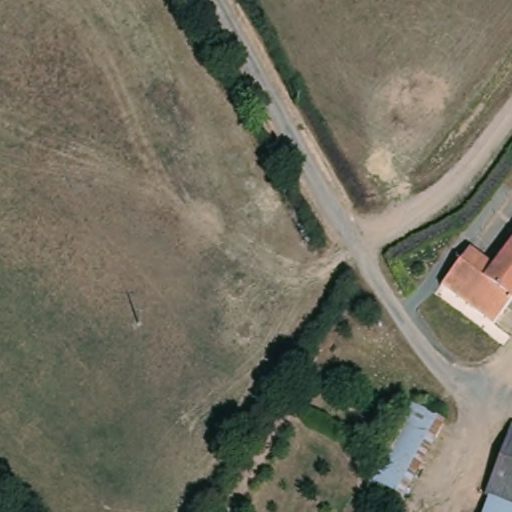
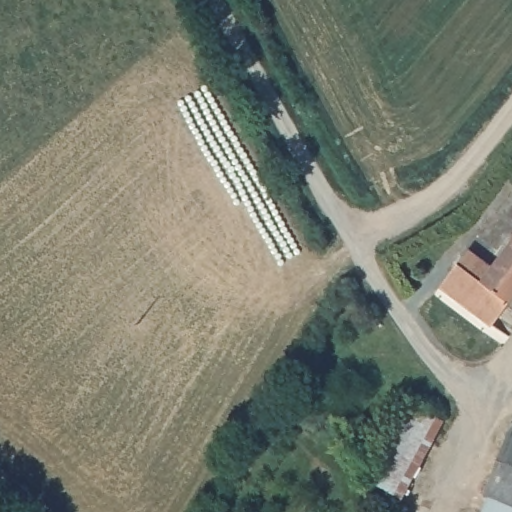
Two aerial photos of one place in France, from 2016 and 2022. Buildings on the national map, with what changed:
unchanged [(456,277),(470,282),(486,256),(503,263),(512,246),(512,311),(499,335),(442,303),(456,277)]
unchanged [(415,405),(450,421),(405,498),(371,483),(415,405)]
unchanged [(512,424),(512,512),(482,512),(512,424)]

